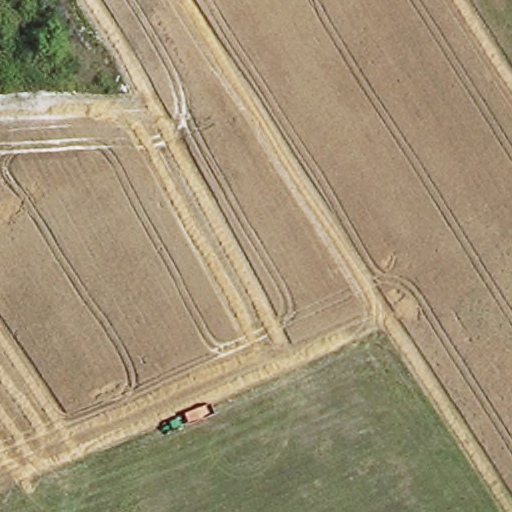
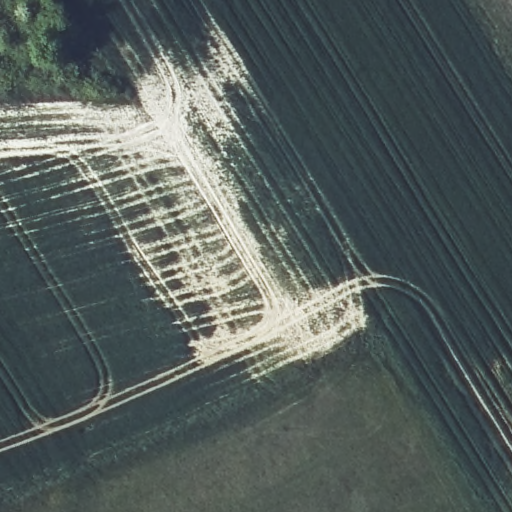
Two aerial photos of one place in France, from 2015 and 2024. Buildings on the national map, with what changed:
[]

